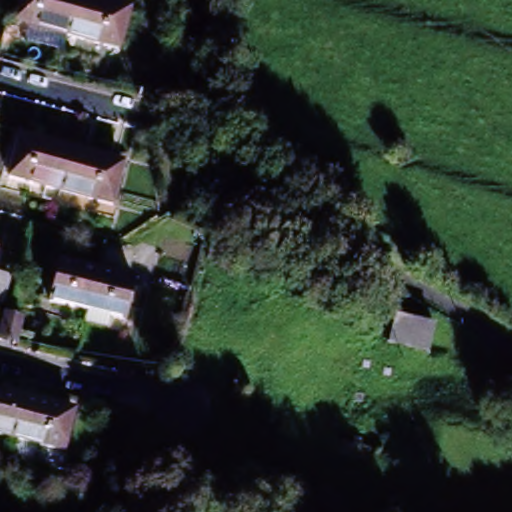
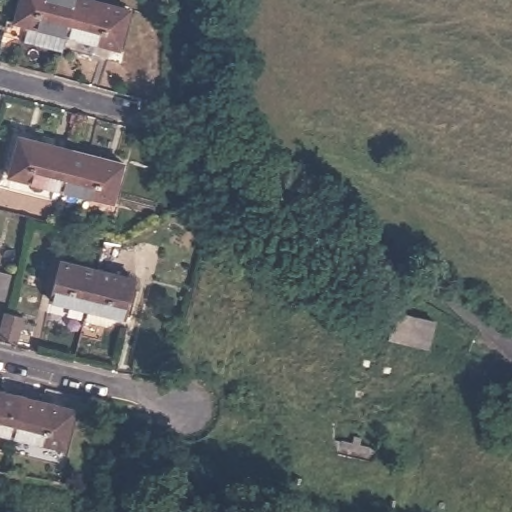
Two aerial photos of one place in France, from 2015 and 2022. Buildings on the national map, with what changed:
unchanged [(14,18),(19,0),(75,0),(67,32),(14,18)]
unchanged [(75,0),(109,0),(128,5),(119,45),(67,32),(75,0)]
unchanged [(13,181),(23,140),(75,153),(65,195),(13,181)]
unchanged [(75,153),(127,167),(116,207),(65,195),(75,153)]
unchanged [(92,308),(53,298),(62,260),(102,269),(92,308)]
unchanged [(140,278),(130,318),(92,308),(102,269),(140,278)]
unchanged [(10,272),(3,298),(0,298),(0,270),(10,272)]
unchanged [(22,315),(15,342),(0,338),(0,323),(3,310),(22,315)]
unchanged [(431,320),(427,349),(388,343),(391,315),(431,320)]
unchanged [(12,440),(0,437),(0,395),(22,401),(12,440)]
unchanged [(74,415),(64,454),(12,440),(22,401),(74,415)]

